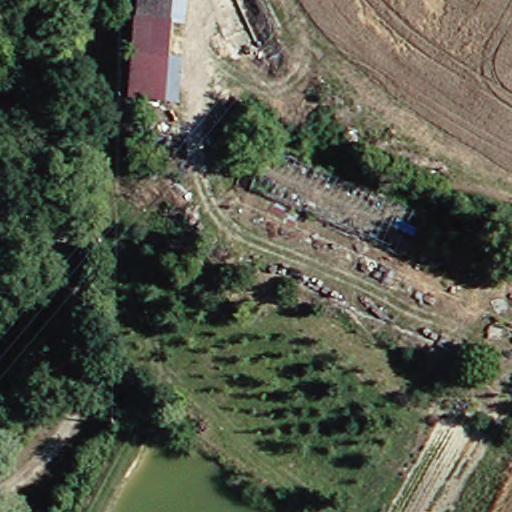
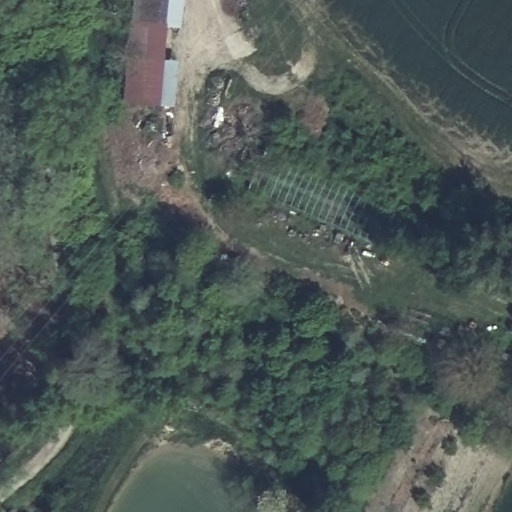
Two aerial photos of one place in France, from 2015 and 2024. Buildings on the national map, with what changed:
unchanged [(188,22),(172,21),(169,58),(185,60),(181,103),(135,100),(144,0),(190,0),(188,22)]

